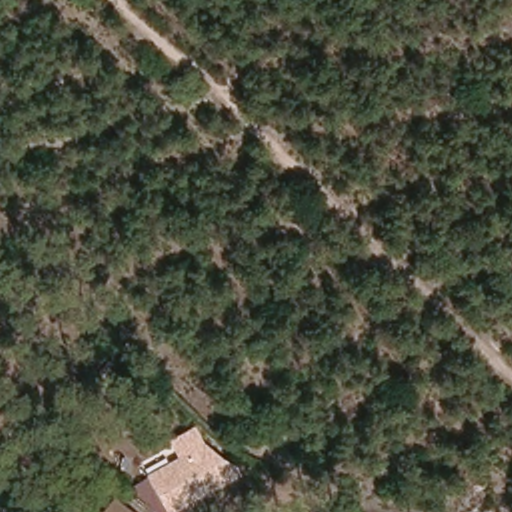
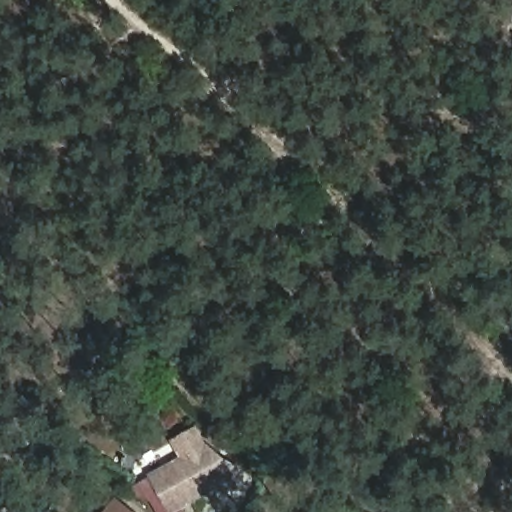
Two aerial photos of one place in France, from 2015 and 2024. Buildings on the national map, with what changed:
unchanged [(170,500),(156,473),(188,455),(205,446),(222,474),(226,481),(190,502),(195,512),(164,512),(160,505),(170,500)]
unchanged [(122,512),(105,512),(111,505),(122,512)]

